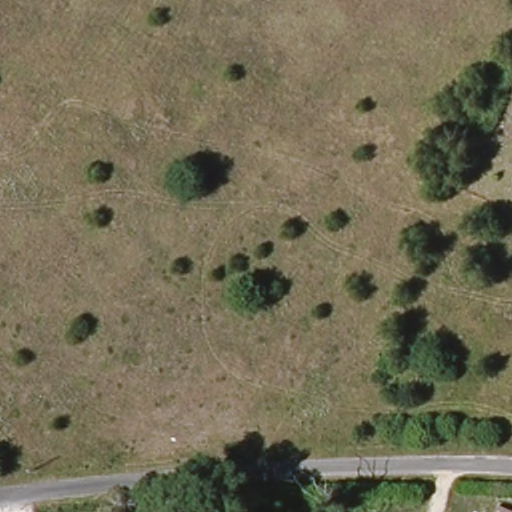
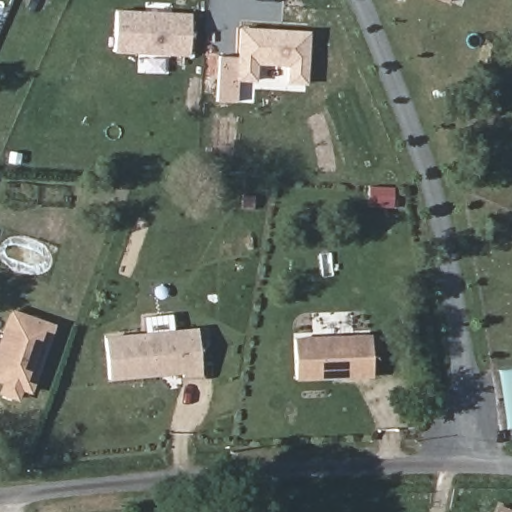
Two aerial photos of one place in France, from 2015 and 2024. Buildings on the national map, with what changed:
new [(441,0),(448,0),(446,2),(441,0)]
new [(115,54),(117,9),(190,12),(188,57),(115,54)]
new [(236,102),(216,102),(219,56),(236,57),(239,27),(309,31),(306,85),(286,83),(287,66),(257,65),(255,82),(237,81),(236,102)]
new [(9,310),(55,325),(29,393),(21,390),(18,401),(0,395),(0,386),(0,384),(0,336),(9,310)]
new [(102,337),(195,328),(201,376),(181,378),(181,374),(108,380),(102,337)]
new [(292,336),(370,334),(372,377),(295,380),(292,336)]
unchanged [(504,511),(506,512),(504,512),(504,511)]

